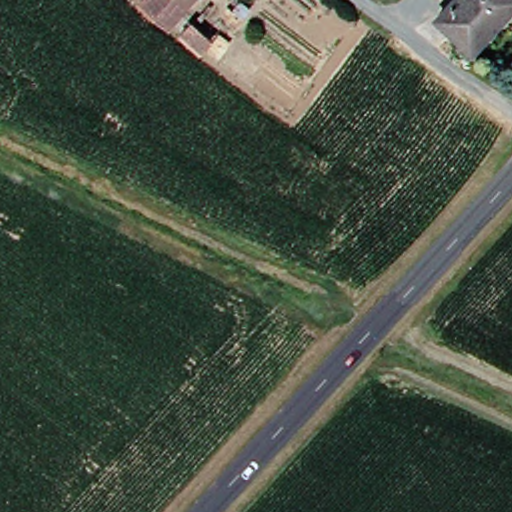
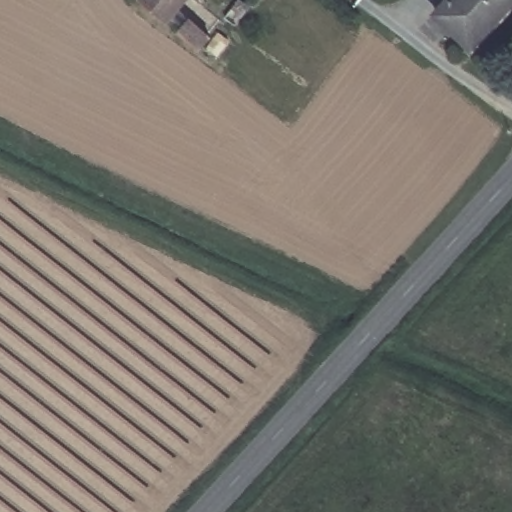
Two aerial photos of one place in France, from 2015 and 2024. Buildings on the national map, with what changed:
unchanged [(144,0),(187,0),(170,20),(144,0)]
unchanged [(487,18),(464,41),(436,14),(449,0),(512,0),(512,7),(495,25),(487,18)]

